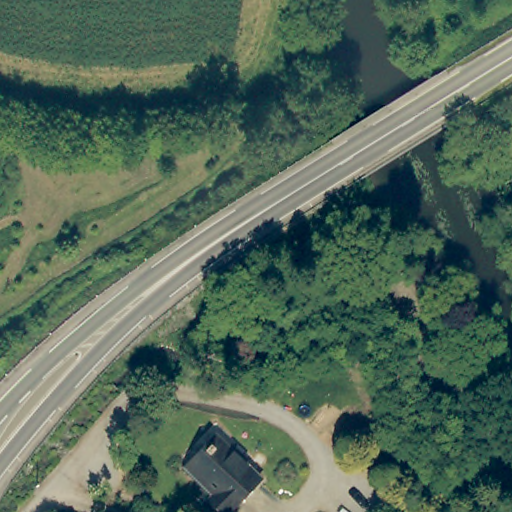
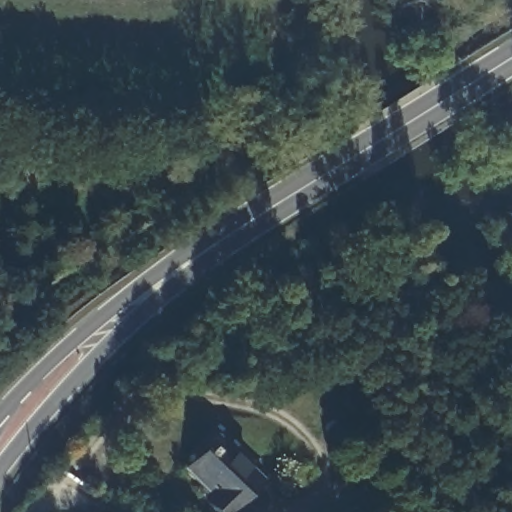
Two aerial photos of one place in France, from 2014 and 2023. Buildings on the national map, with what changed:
unchanged [(267,474),(232,512),(229,512),(213,497),(218,491),(193,468),(224,434),(267,474)]

